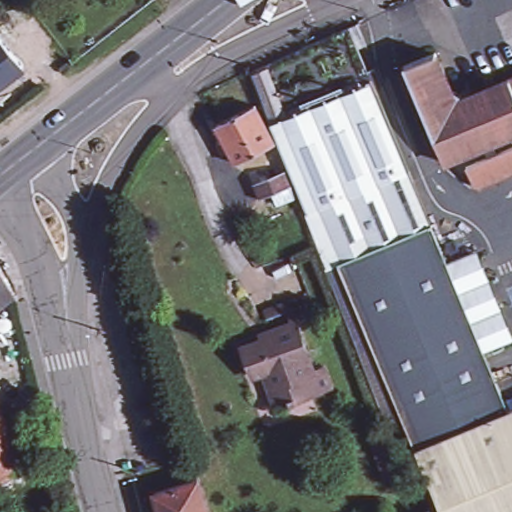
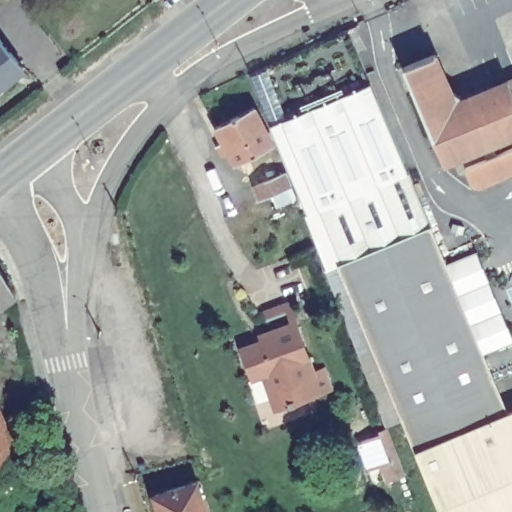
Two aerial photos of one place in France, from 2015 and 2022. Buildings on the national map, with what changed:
unchanged [(0,83),(0,39),(21,66),(0,83)]
unchanged [(491,139),(482,143),(443,159),(403,62),(435,50),(451,89),(456,90),(462,96),(508,77),(512,76),(512,130),(491,139)]
unchanged [(258,181),(287,168),(271,124),(272,124),(252,77),(270,70),(290,117),(373,82),(412,177),(313,220),(306,223),(293,184),(265,195),(258,181)]
unchanged [(251,159),(248,153),(235,160),(215,122),(255,103),(274,140),(257,149),(260,155),(251,159)]
unchanged [(491,139),(495,150),(512,144),(512,169),(479,183),(473,181),(466,163),(486,154),(482,143),(491,139)]
unchanged [(403,417),(386,424),(313,240),(306,223),(313,220),(412,177),(431,221),(338,261),(403,417)]
unchanged [(403,417),(338,261),(431,221),(447,262),(485,351),(485,353),(509,410),(460,430),(417,448),(403,417)]
unchanged [(485,351),(448,263),(479,251),(512,330),(512,343),(485,353),(485,351)]
unchanged [(15,290),(0,302),(0,263),(15,289),(15,290)]
unchanged [(325,369),(331,389),(295,402),(295,404),(289,406),(288,404),(276,408),(265,374),(254,377),(244,348),(263,341),(262,335),(272,331),(266,314),(289,306),(295,324),(312,373),(325,369)]
unchanged [(443,512),(417,448),(460,430),(509,410),(512,409),(512,512),(443,512)]
unchanged [(0,410),(23,462),(6,470),(10,481),(0,486),(0,410)]
unchanged [(403,468),(387,474),(370,431),(386,424),(399,456),(403,468)]
unchanged [(206,512),(160,512),(155,494),(197,481),(206,512)]

